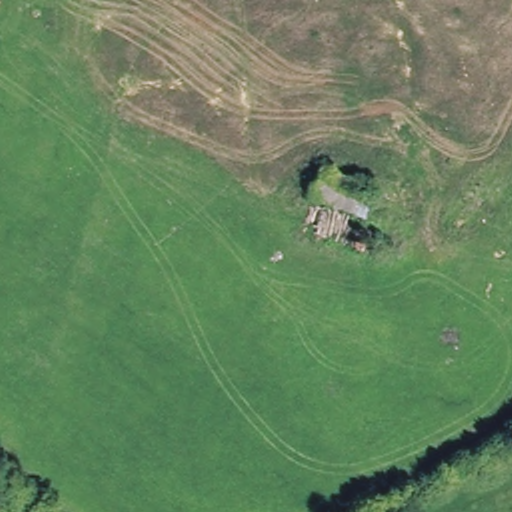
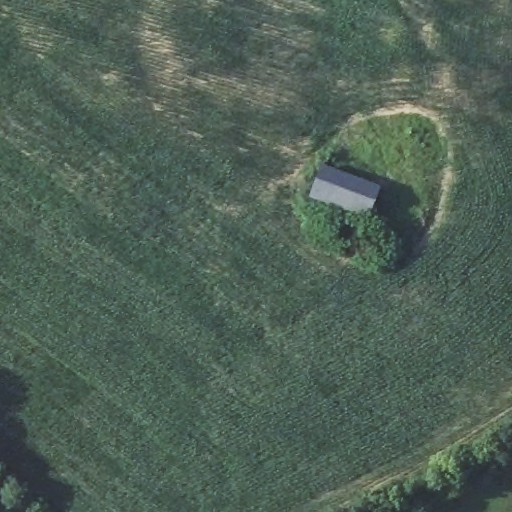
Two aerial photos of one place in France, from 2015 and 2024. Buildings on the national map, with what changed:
demolished [(381,191),(367,225),(302,203),(320,165),(381,191)]
new [(311,198),(320,172),(376,195),(367,222),(311,198)]

